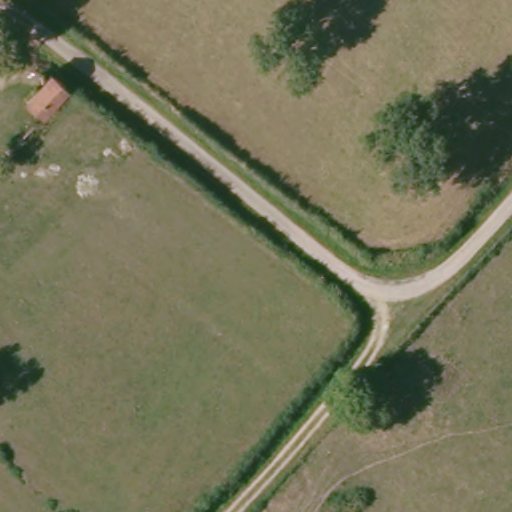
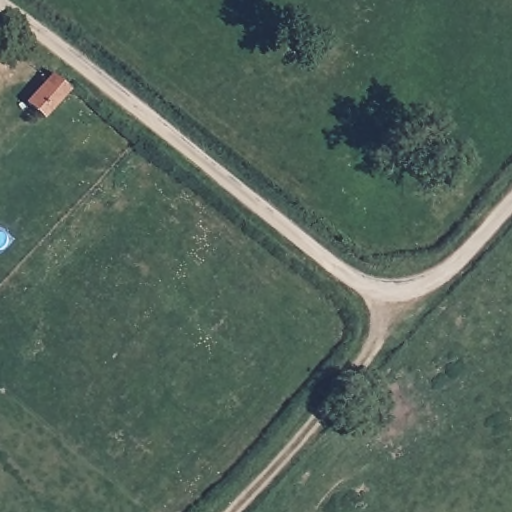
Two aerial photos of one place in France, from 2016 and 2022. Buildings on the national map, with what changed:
unchanged [(39,125),(16,107),(40,81),(63,100),(39,125)]

